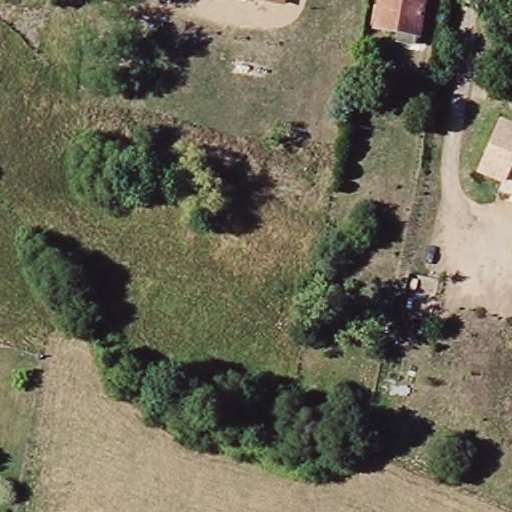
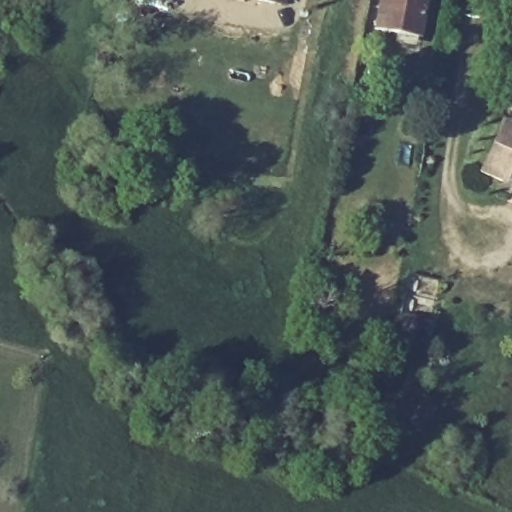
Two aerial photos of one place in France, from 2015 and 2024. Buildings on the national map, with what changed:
unchanged [(153,0),(169,0),(168,2),(153,0)]
unchanged [(250,0),(277,0),(275,5),(250,0)]
unchanged [(375,33),(382,0),(424,0),(417,40),(412,40),(412,47),(398,45),(399,38),(375,33)]
unchanged [(502,181),(481,173),(502,124),(512,128),(512,160),(502,181)]

